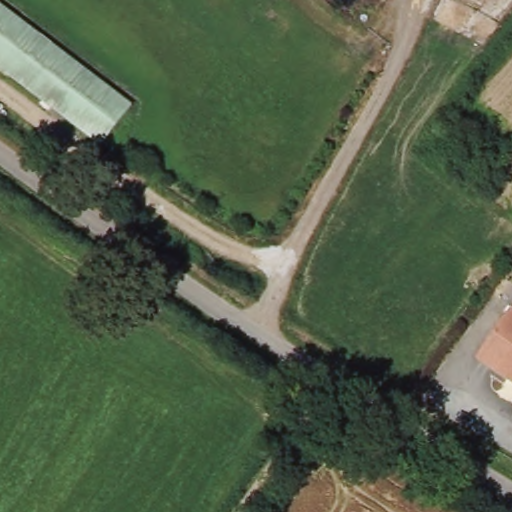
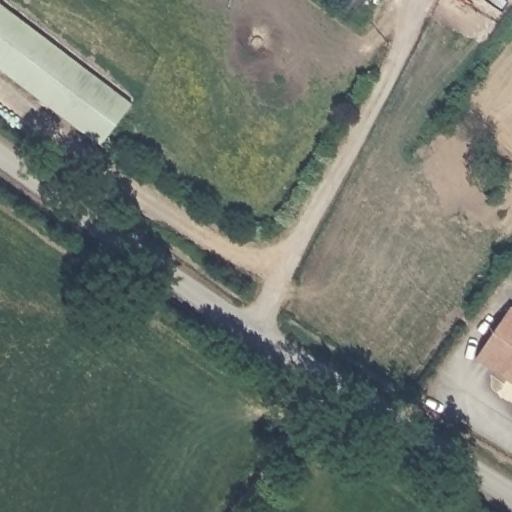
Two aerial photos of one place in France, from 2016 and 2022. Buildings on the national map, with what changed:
unchanged [(132,110),(103,146),(0,62),(0,2),(132,110)]
unchanged [(512,314),(512,376),(482,353),(512,314)]

